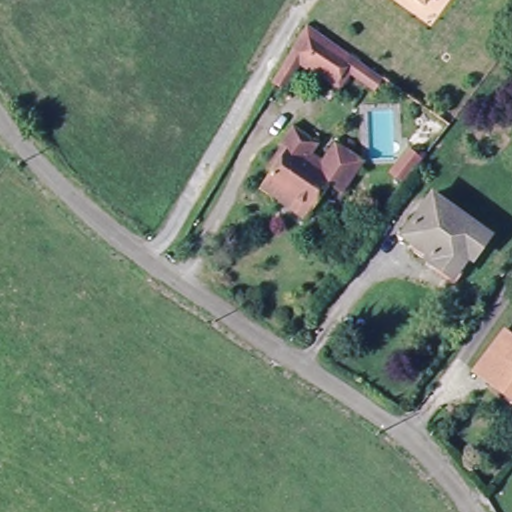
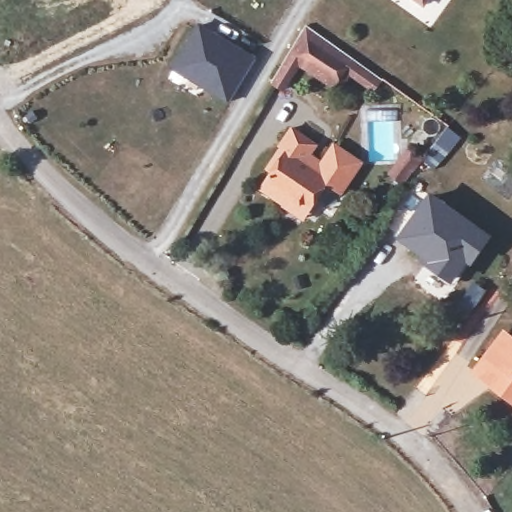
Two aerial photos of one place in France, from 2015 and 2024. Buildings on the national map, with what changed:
demolished [(401,0),(455,0),(433,23),(401,0)]
new [(415,0),(430,0),(425,7),(415,0)]
new [(255,57),(228,102),(204,89),(198,99),(167,80),(200,25),(255,57)]
unchanged [(308,27),(351,59),(336,79),(294,51),(308,27)]
unchanged [(293,52),(294,51),(336,79),(351,59),(381,81),(370,96),(351,82),(343,94),(341,96),(305,71),(290,92),(274,82),(293,52)]
unchanged [(277,200),(259,188),(273,167),(268,163),(279,146),(275,143),(286,127),(311,143),(299,161),(315,172),(327,155),(349,171),(332,196),(319,187),(305,209),(300,216),(277,200)]
unchanged [(411,158),(393,181),(381,171),(399,149),(411,158)]
unchanged [(429,199),(488,242),(472,262),(467,258),(450,282),(425,264),(429,257),(401,237),(429,199)]
unchanged [(512,337),(512,390),(501,382),(496,388),(482,377),(512,337)]

